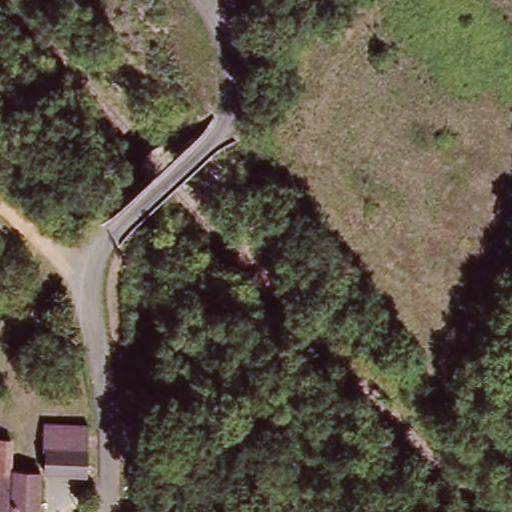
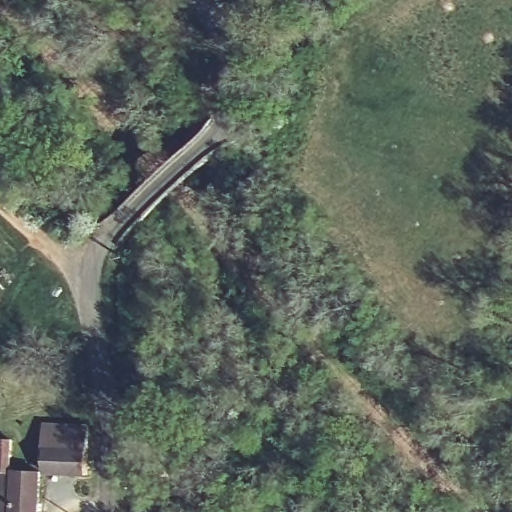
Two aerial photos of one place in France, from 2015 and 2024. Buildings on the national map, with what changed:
unchanged [(90,428),(90,475),(45,472),(46,448),(44,447),(45,425),(90,428)]
unchanged [(10,440),(8,473),(39,473),(37,512),(0,512),(0,440),(10,440)]

